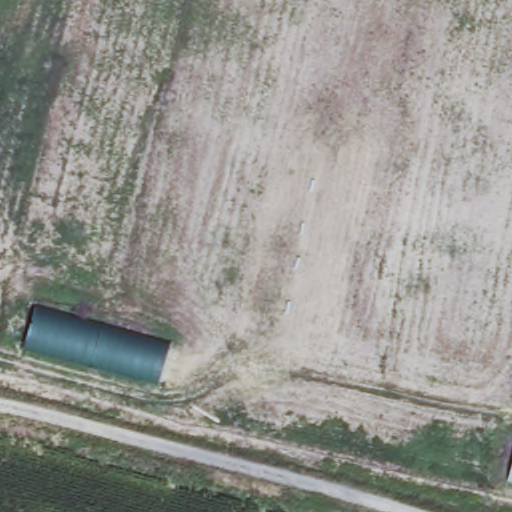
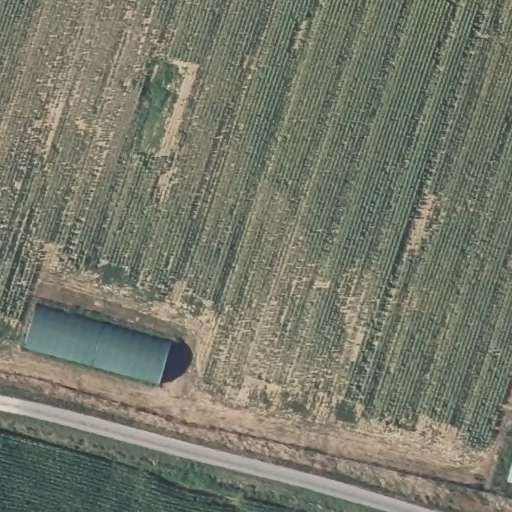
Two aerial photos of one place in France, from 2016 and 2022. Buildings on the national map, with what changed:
unchanged [(26,346),(36,307),(141,337),(132,376),(26,346)]
unchanged [(512,470),(512,482),(508,481),(512,470)]

